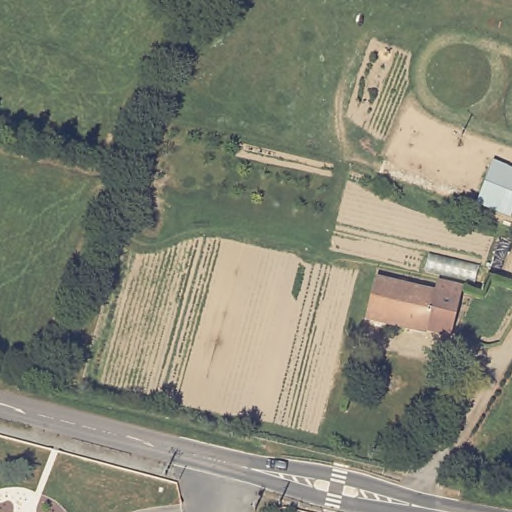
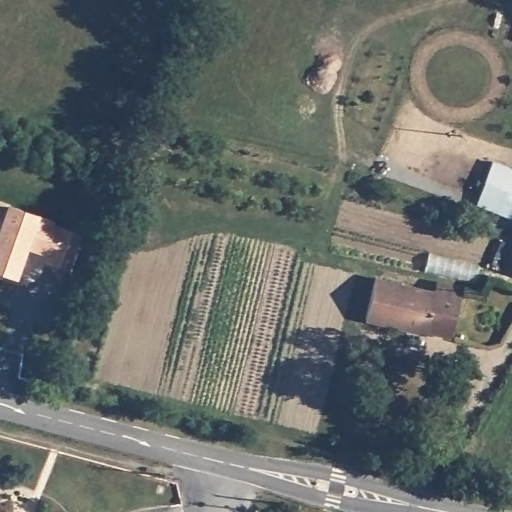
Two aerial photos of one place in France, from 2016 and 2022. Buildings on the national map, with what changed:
new [(47,223),(45,227),(77,238),(65,272),(41,263),(45,252),(22,243),(12,269),(0,264),(0,206),(47,223)]
unchanged [(432,286),(434,278),(460,284),(448,332),(425,326),(424,329),(364,315),(375,273),(432,286)]

